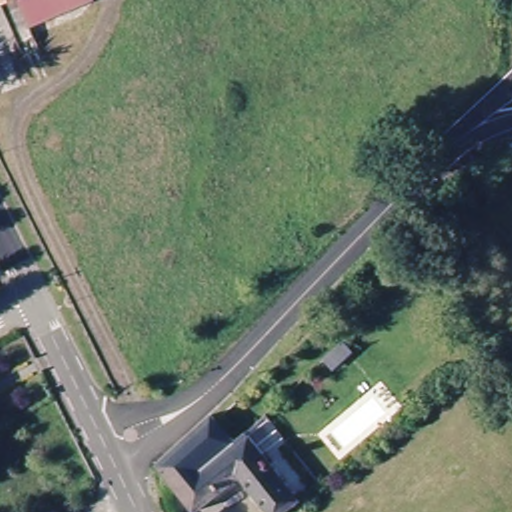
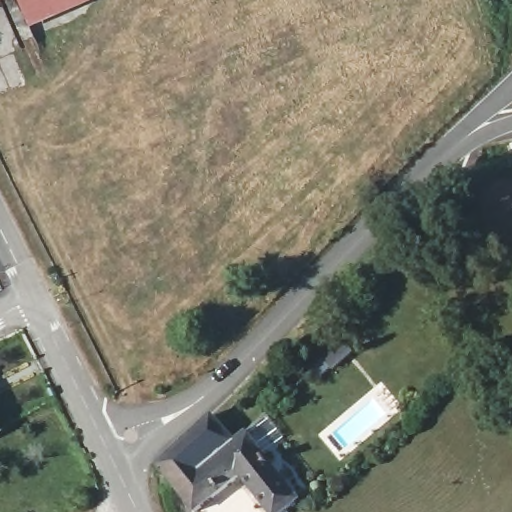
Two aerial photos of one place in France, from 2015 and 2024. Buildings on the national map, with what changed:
unchanged [(32,25),(22,0),(92,0),(32,25)]
unchanged [(350,352),(333,368),(325,358),(341,342),(350,352)]
unchanged [(252,439),(303,506),(296,512),(268,512),(246,482),(207,512),(196,512),(171,482),(162,471),(213,422),(244,449),(252,439)]

